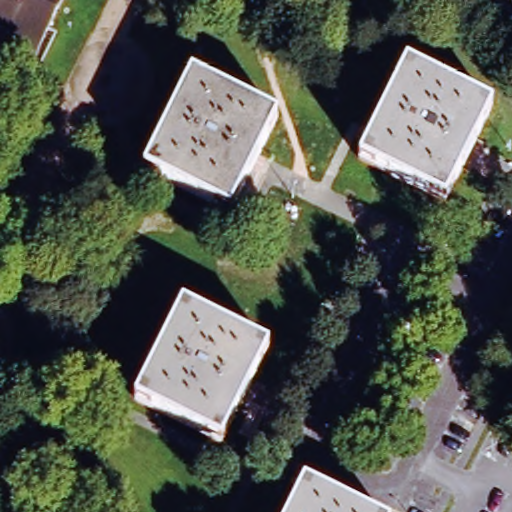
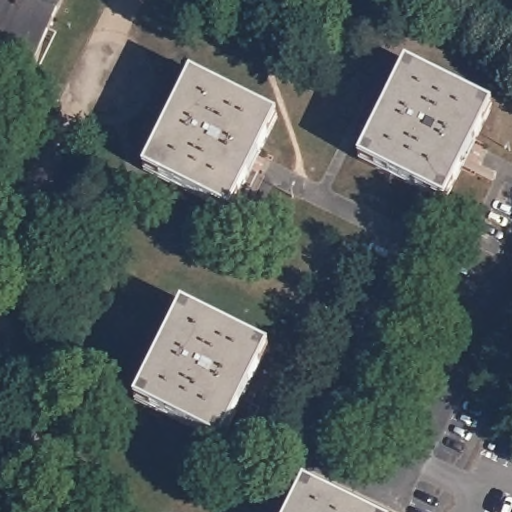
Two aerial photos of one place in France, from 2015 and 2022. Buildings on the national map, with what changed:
unchanged [(0,53),(0,0),(62,0),(29,66),(0,53)]
unchanged [(445,202),(360,160),(407,66),(491,107),(445,202)]
unchanged [(229,212),(145,170),(191,76),(276,119),(229,212)]
unchanged [(221,441),(137,400),(183,306),(267,348),(221,441)]
unchanged [(305,483),(363,512),(291,512),(305,483)]

